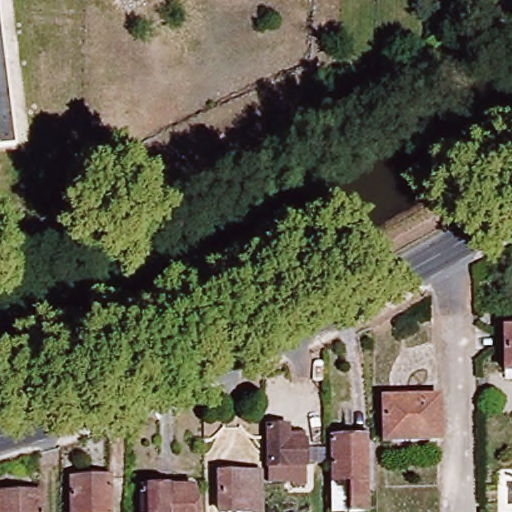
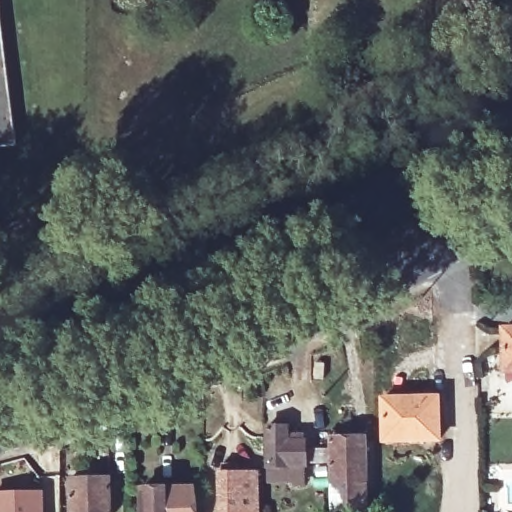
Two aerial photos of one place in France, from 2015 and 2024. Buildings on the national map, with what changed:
unchanged [(0,173),(0,24),(18,171),(0,173)]
unchanged [(512,329),(512,371),(505,371),(504,330),(512,329)]
unchanged [(437,398),(438,440),(385,441),(384,399),(437,398)]
unchanged [(287,441),(304,441),(304,466),(269,467),(268,429),(287,428),(287,441)]
unchanged [(328,441),(329,432),(366,431),(366,441),(367,512),(329,512),(329,486),(328,441)]
unchanged [(220,512),(220,475),(256,474),(257,512),(220,512)]
unchanged [(108,480),(108,512),(71,512),(71,480),(108,480)]
unchanged [(193,512),(142,512),(142,489),(193,488),(193,512)]
unchanged [(43,512),(0,512),(0,495),(43,494),(43,512)]

